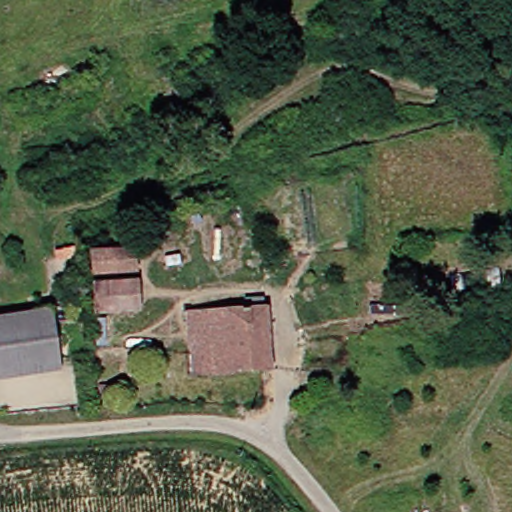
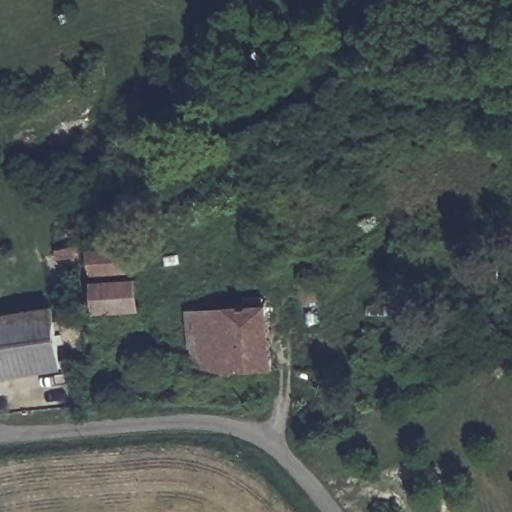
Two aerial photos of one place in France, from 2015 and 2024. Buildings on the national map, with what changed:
unchanged [(231,235),(235,263),(218,265),(214,237),(231,235)]
unchanged [(84,273),(84,247),(131,245),(131,272),(84,273)]
unchanged [(84,279),(132,277),(133,310),(86,312),(84,279)]
unchanged [(250,369),(180,374),(175,308),(256,302),(257,314),(261,368),(250,369)]
unchanged [(365,304),(390,303),(391,315),(366,316),(365,304)]
unchanged [(0,377),(0,313),(45,305),(58,369),(28,374),(2,377),(0,377)]

